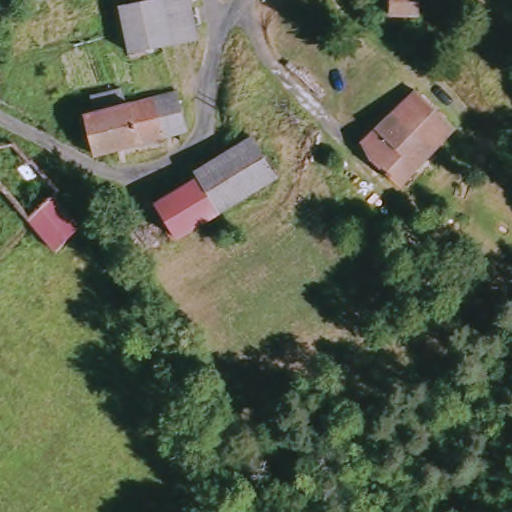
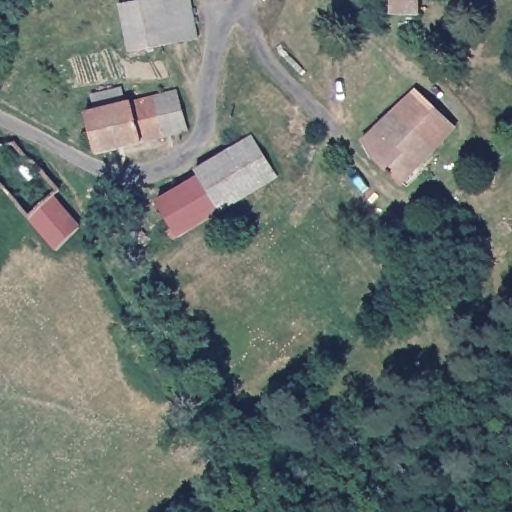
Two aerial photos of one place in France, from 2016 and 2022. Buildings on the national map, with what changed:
unchanged [(126,4),(142,1),(150,0),(169,0),(177,42),(177,47),(168,48),(131,51),(126,4)]
unchanged [(177,42),(169,0),(201,0),(205,38),(177,42)]
unchanged [(393,8),(392,0),(423,0),(424,9),(393,8)]
unchanged [(370,140),(374,137),(425,86),(461,121),(412,185),(379,156),(370,140)]
unchanged [(105,155),(94,117),(107,113),(104,94),(132,88),(136,103),(186,88),(200,127),(105,155)]
unchanged [(209,163),(252,130),(282,172),(235,206),(209,171),(205,166),(209,163)]
unchanged [(2,147),(0,150),(0,146),(2,147)]
unchanged [(235,206),(189,240),(164,206),(209,171),(235,206)]
unchanged [(35,218),(60,194),(82,223),(70,238),(62,246),(35,218)]

